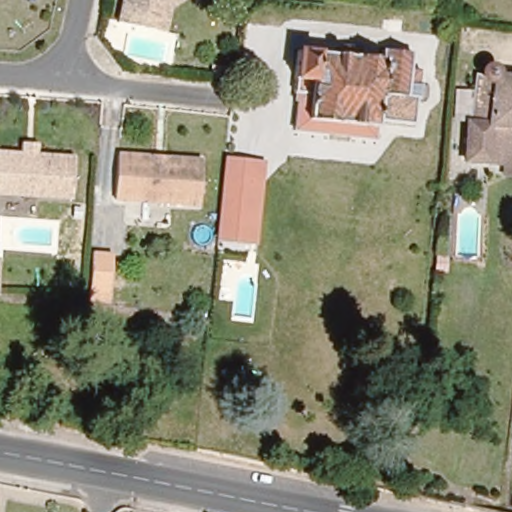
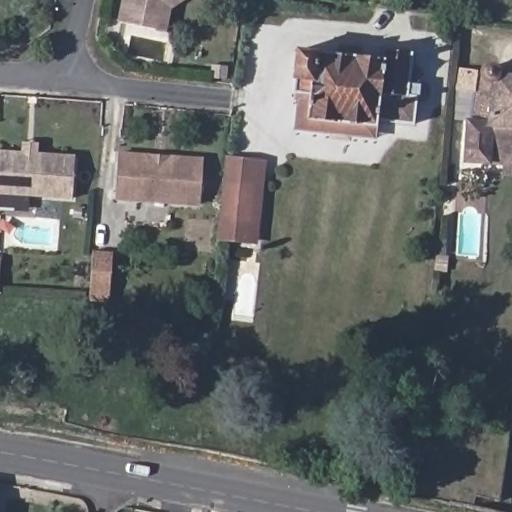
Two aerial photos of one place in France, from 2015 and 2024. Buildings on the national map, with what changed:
unchanged [(164,29),(155,27),(117,19),(120,0),(177,0),(169,4),(164,29)]
unchanged [(387,50),(417,54),(415,69),(424,69),(423,85),(425,85),(424,97),(421,96),(418,124),(381,120),(380,128),(376,127),(328,122),(311,120),(314,95),(307,94),(298,94),(300,79),(298,79),(301,51),(345,55),(346,47),(363,49),(362,56),(386,59),(387,50)]
unchanged [(226,70),(225,83),(210,81),(212,69),(226,70)]
unchanged [(503,163),(465,161),(468,120),(475,73),(482,74),(483,71),(485,70),(488,69),(490,69),(493,70),(494,73),(496,74),(512,76),(512,175),(502,175),(503,163)]
unchanged [(379,139),(297,130),(301,102),(297,101),(298,94),(307,94),(314,95),(311,120),(328,122),(376,127),(380,128),(379,139)]
unchanged [(70,197),(0,192),(0,149),(18,150),(18,140),(35,140),(34,151),(72,154),(70,197)]
unchanged [(152,159),(162,159),(165,156),(201,159),(198,203),(113,197),(116,153),(148,155),(152,159)]
unchanged [(266,163),(257,244),(217,239),(226,158),(266,163)]
unchanged [(110,259),(106,306),(86,304),(90,257),(110,259)]

